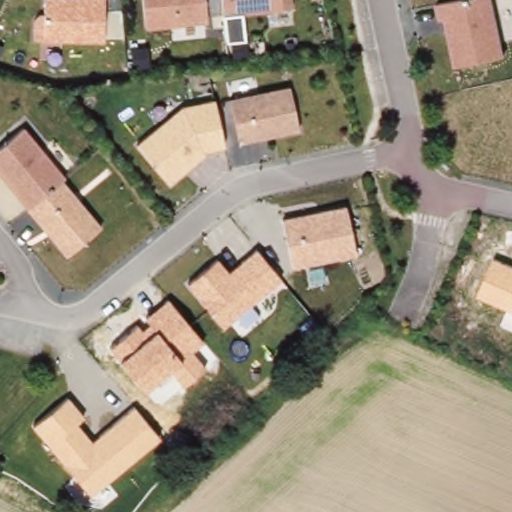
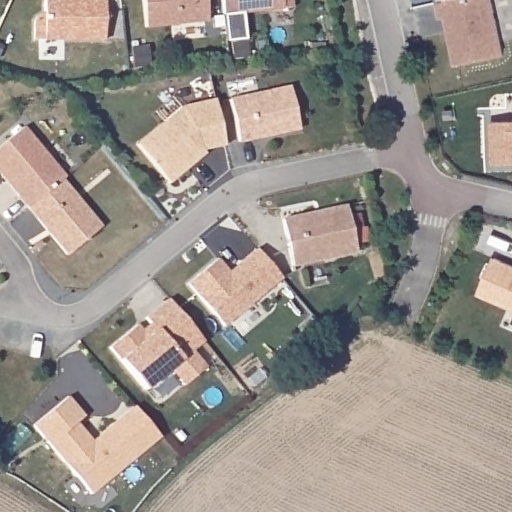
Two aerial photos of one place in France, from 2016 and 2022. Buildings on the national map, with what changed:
unchanged [(103,44),(33,43),(34,18),(44,18),(44,0),(104,0),(103,44)]
unchanged [(207,26),(145,32),(143,0),(204,0),(207,26)]
unchanged [(292,11),(225,17),(223,0),(292,0),(292,11)]
new [(437,6),(436,0),(466,0),(437,6)]
unchanged [(505,60),(456,70),(446,21),(441,22),(437,6),(466,0),(492,0),(505,60)]
unchanged [(290,89),(300,134),(240,147),(230,100),(290,89)]
unchanged [(136,146),(181,107),(214,99),(222,145),(203,149),(170,184),(136,146)]
new [(512,164),(492,164),(490,122),(512,122),(512,164)]
unchanged [(102,228),(65,259),(0,179),(0,150),(24,131),(102,228)]
unchanged [(282,218),(346,205),(356,252),(291,266),(282,218)]
unchanged [(188,284),(219,260),(229,272),(258,248),(282,278),(222,326),(188,284)]
unchanged [(493,258),(512,266),(512,310),(477,296),(493,258)]
unchanged [(139,324),(142,329),(150,323),(145,318),(170,298),(204,340),(193,351),(206,368),(182,387),(169,371),(145,391),(120,360),(110,347),(139,324)]
unchanged [(34,425),(69,397),(85,416),(77,423),(93,441),(136,406),(160,438),(90,494),(34,425)]

